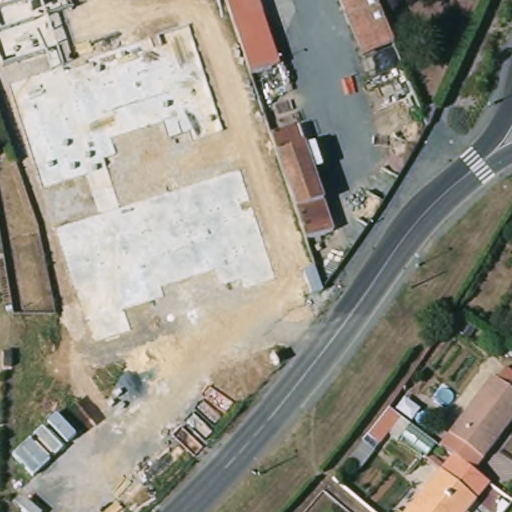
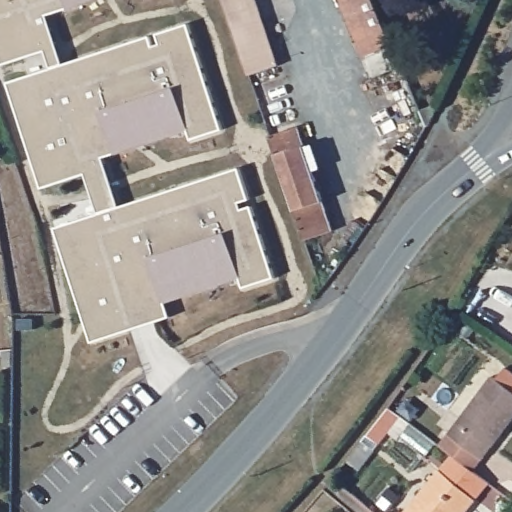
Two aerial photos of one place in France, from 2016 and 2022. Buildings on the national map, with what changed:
unchanged [(65,0),(69,12),(47,19),(62,68),(51,72),(44,53),(2,69),(0,63),(0,0),(65,0)]
unchanged [(252,74),(227,0),(258,0),(279,65),(252,74)]
unchanged [(341,0),(375,0),(387,29),(393,46),(364,58),(357,40),(341,0)]
new [(189,24),(224,129),(191,139),(187,129),(116,153),(104,158),(120,207),(240,169),(275,278),(244,288),(240,277),(165,302),(171,318),(92,343),(55,228),(98,214),(86,174),(41,189),(8,83),(51,72),(62,68),(189,24)]
unchanged [(292,130),(327,234),(301,243),(273,158),(271,149),(267,139),(292,130)]
unchanged [(496,382),(506,369),(512,374),(512,422),(481,462),(471,474),(438,448),(447,436),(492,379),(496,382)]
unchanged [(409,418),(386,446),(376,437),(398,409),(409,418)]
unchanged [(473,496),(459,512),(404,512),(441,469),(473,496)]

